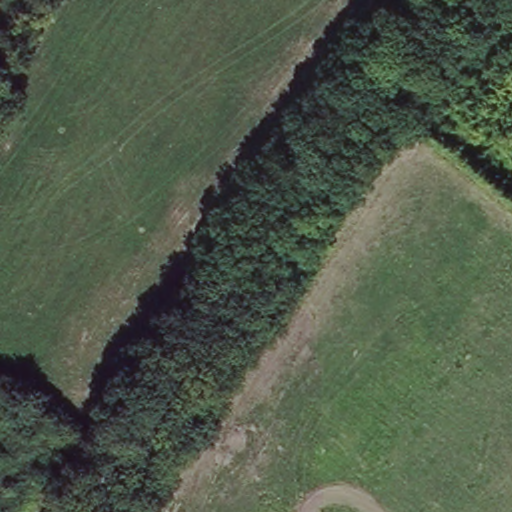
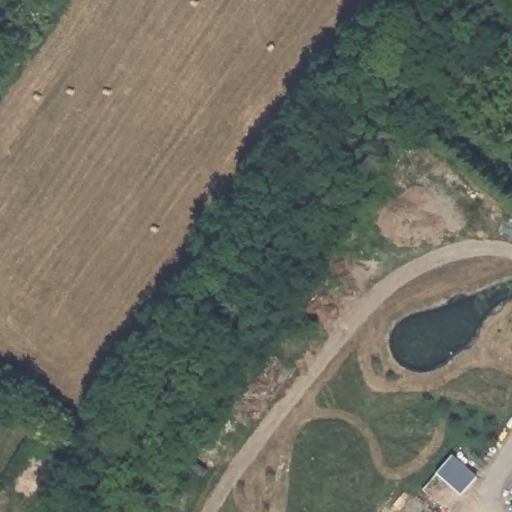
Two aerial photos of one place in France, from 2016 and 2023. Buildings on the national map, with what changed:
new [(453,456),(476,476),(461,495),(437,474),(453,456)]

